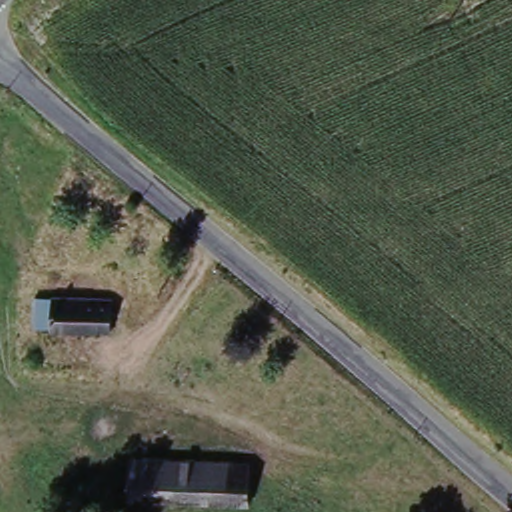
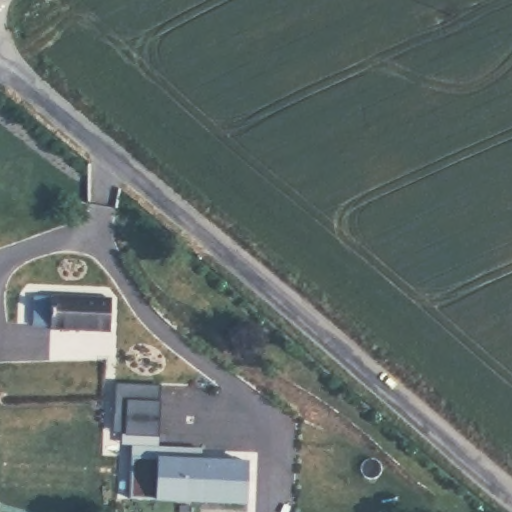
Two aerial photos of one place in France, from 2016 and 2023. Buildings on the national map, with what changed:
unchanged [(115,301),(113,336),(38,330),(41,298),(115,301)]
new [(159,446),(204,449),(204,462),(135,461),(135,447),(123,446),(123,435),(115,434),(117,384),(161,383),(159,446)]
unchanged [(136,498),(135,461),(253,464),(252,503),(187,500),(136,498)]

